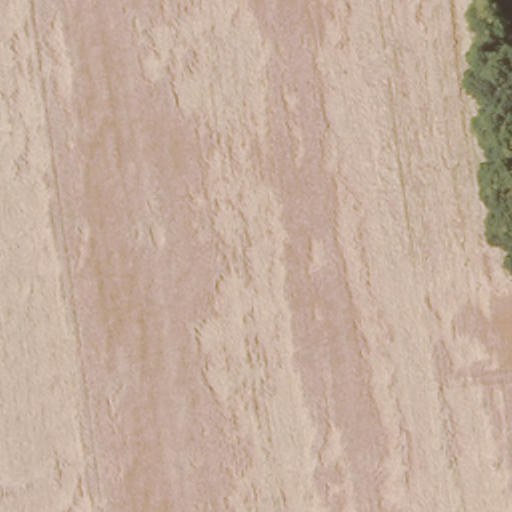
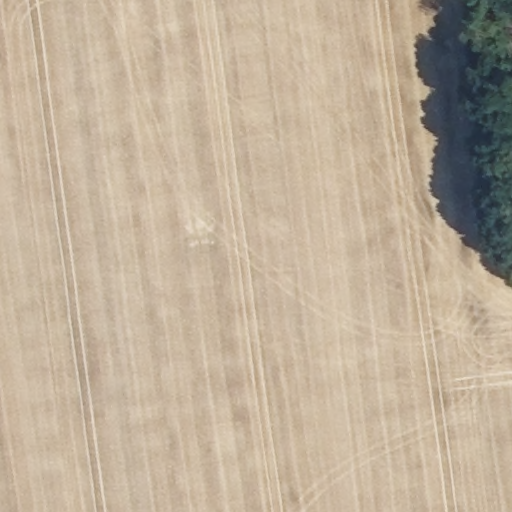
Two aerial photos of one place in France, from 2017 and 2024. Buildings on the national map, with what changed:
[]

